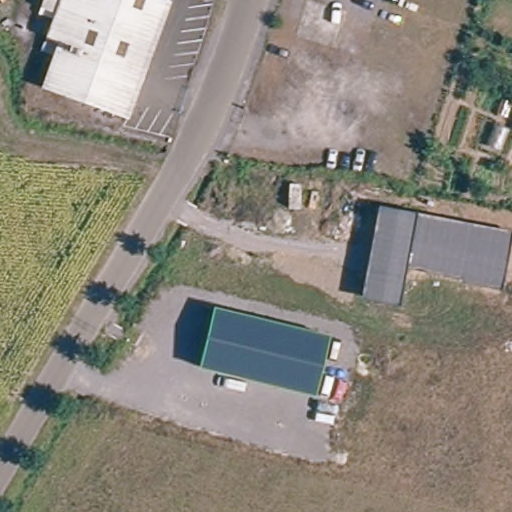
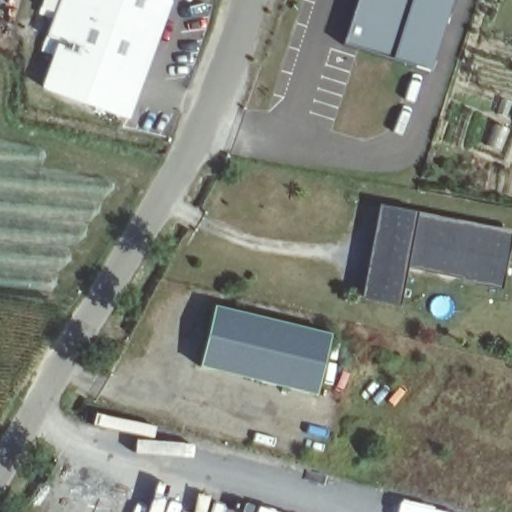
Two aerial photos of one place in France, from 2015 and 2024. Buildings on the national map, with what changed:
unchanged [(169,10),(125,127),(44,97),(62,51),(47,46),(55,23),(40,18),(47,0),(169,0),(169,1),(169,10)]
new [(455,0),(432,72),(342,44),(356,0),(455,0)]
unchanged [(378,205),(417,212),(512,231),(500,290),(462,283),(460,275),(408,266),(401,306),(361,298),(378,205)]
unchanged [(214,307),(330,335),(316,396),(199,368),(214,307)]

